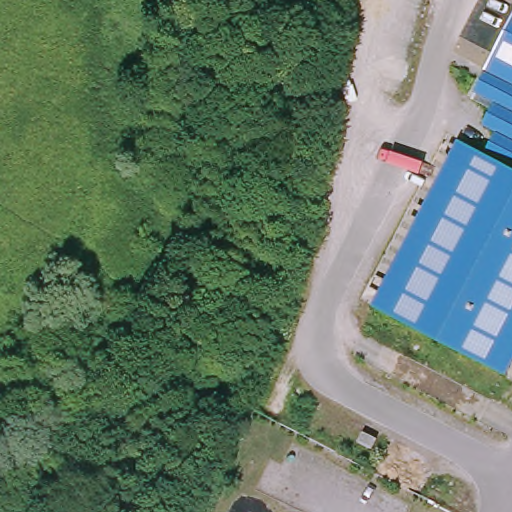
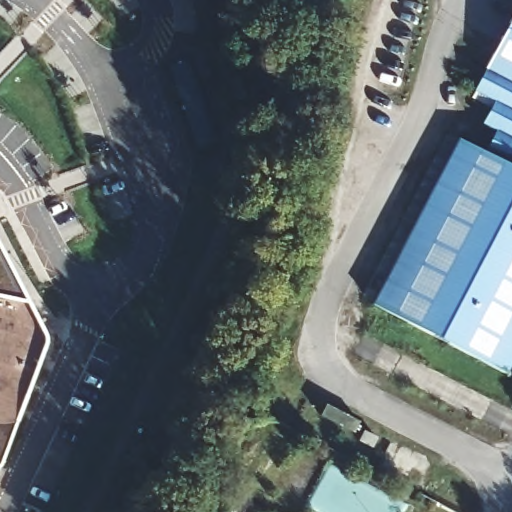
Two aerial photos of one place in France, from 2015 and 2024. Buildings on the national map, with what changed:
unchanged [(385,312),(460,138),(485,149),(495,126),(485,123),(490,108),(467,98),(511,0),(512,0),(512,364),(385,312)]
new [(0,463),(0,250),(45,341),(0,463)]

